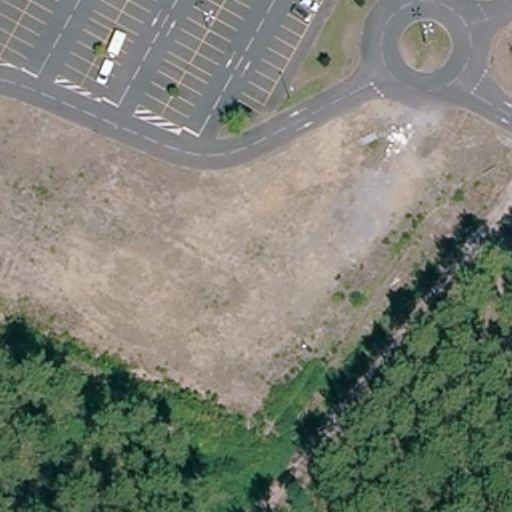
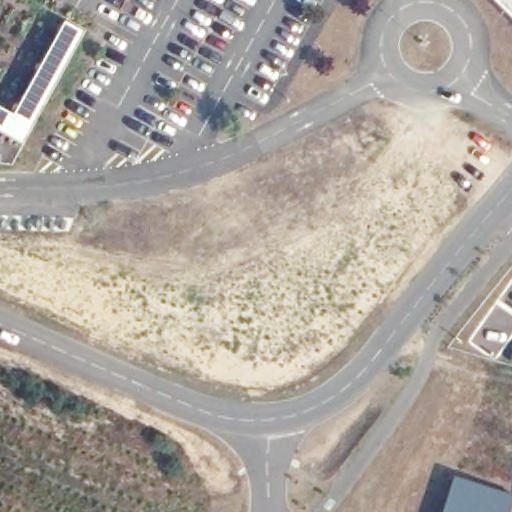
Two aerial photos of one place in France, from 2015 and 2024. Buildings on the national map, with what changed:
new [(512,13),(498,0),(512,0),(512,13)]
new [(15,116),(66,22),(86,33),(25,145),(0,131),(0,108),(15,116)]
new [(512,495),(512,508),(511,512),(443,512),(454,476),(512,495)]

